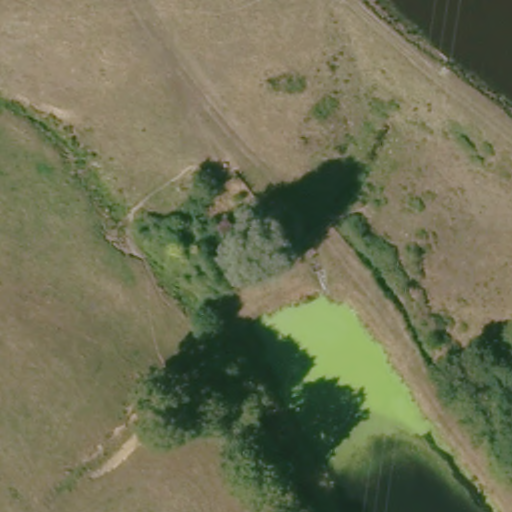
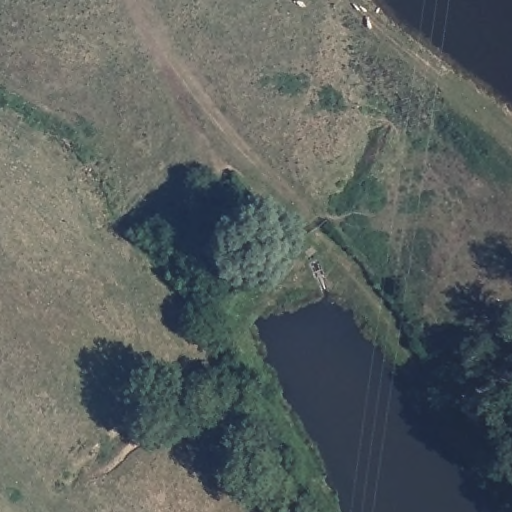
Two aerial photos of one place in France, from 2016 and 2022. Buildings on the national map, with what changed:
unchanged [(239,227),(227,236),(217,224),(230,215),(239,227)]

